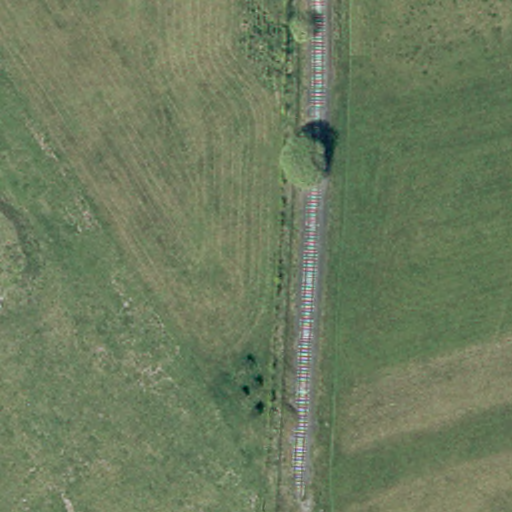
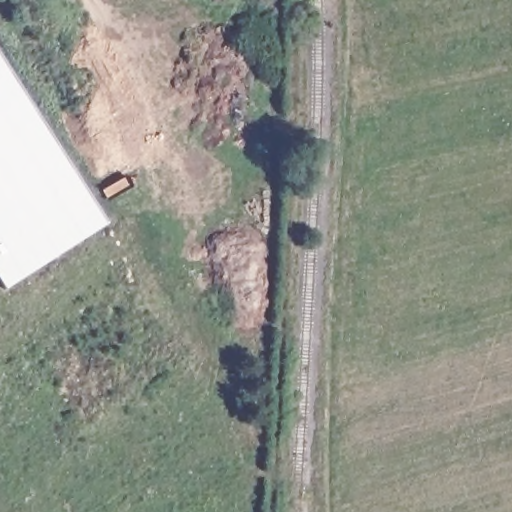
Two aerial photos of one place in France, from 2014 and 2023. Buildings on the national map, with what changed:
new [(0,52),(109,222),(5,289),(0,281),(0,52)]

